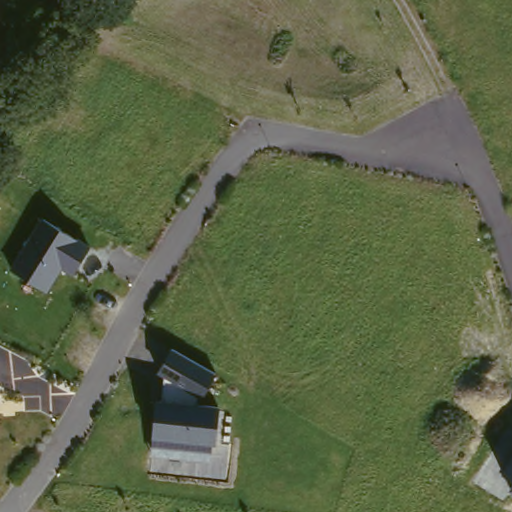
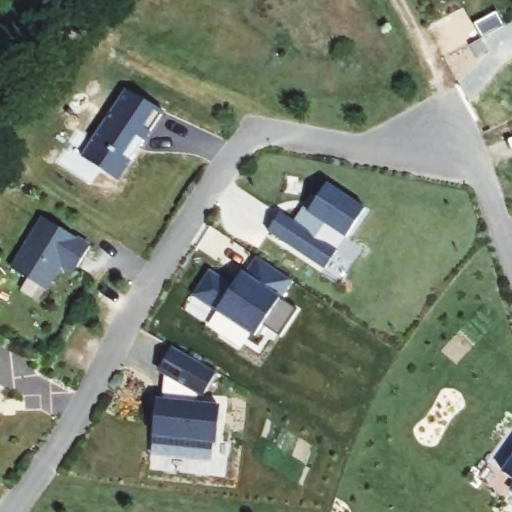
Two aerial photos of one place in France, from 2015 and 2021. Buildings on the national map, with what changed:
new [(497,13),(505,28),(482,40),(474,25),(497,13)]
new [(127,89),(162,112),(118,181),(83,158),(127,89)]
new [(268,233),(281,212),(295,222),(311,196),(317,199),(328,185),(365,209),(345,240),(325,271),(268,233)]
unchanged [(11,267),(40,218),(89,246),(72,274),(60,268),(46,291),(11,267)]
new [(262,325),(254,338),(216,311),(195,297),(210,272),(234,286),(242,272),(246,274),(256,259),(292,283),(280,299),(297,310),(278,337),(262,325)]
unchanged [(159,400),(162,401),(164,376),(159,372),(172,347),(217,373),(205,396),(201,393),(200,403),(219,406),(216,445),(212,444),(210,460),(151,455),(159,400)]
unchanged [(0,378),(0,366),(5,369),(0,378)]
unchanged [(502,472),(512,458),(512,479),(502,472)]
unchanged [(512,486),(512,494),(508,491),(512,486)]

